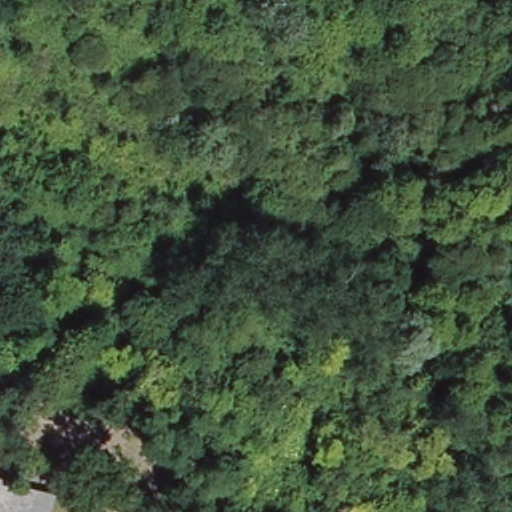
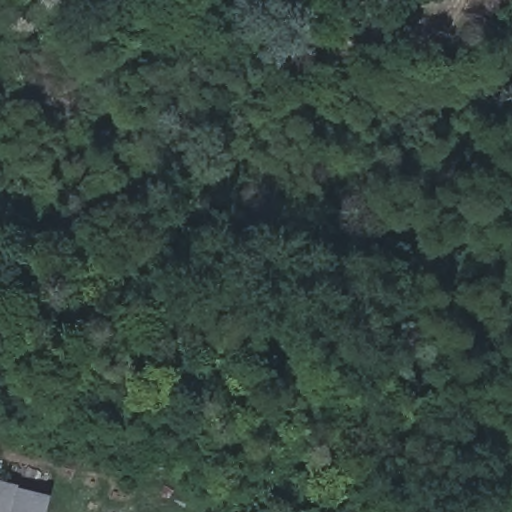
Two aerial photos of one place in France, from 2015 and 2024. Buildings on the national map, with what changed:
unchanged [(46,494),(42,512),(0,512),(0,483),(46,494)]

